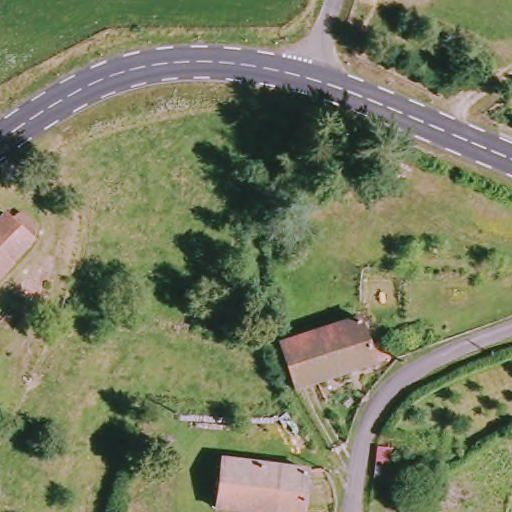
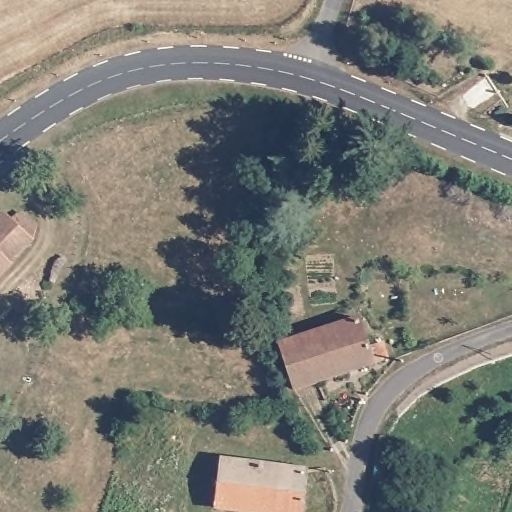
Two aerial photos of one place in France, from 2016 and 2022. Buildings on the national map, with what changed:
unchanged [(15,223),(23,214),(38,227),(38,245),(0,284),(0,229),(10,217),(15,223)]
unchanged [(324,396),(301,403),(288,368),(286,361),(366,333),(373,358),(388,353),(393,372),(324,396)]
unchanged [(374,450),(404,450),(399,491),(371,491),(374,450)]
unchanged [(303,512),(273,512),(218,506),(224,457),(308,467),(303,512)]

